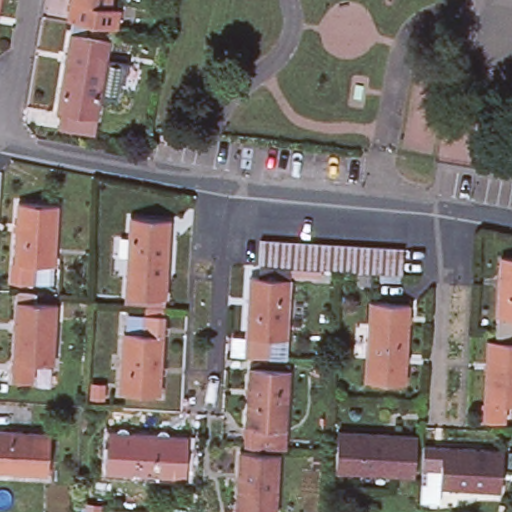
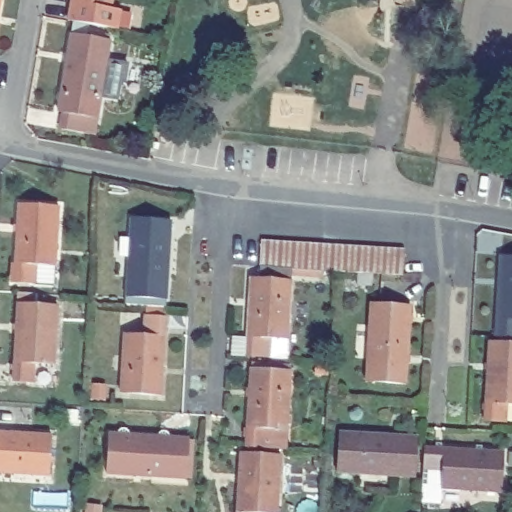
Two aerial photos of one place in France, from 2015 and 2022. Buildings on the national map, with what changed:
unchanged [(2,0),(0,11),(0,0),(2,0)]
unchanged [(90,22),(70,18),(73,0),(113,0),(112,6),(122,8),(119,27),(90,22)]
unchanged [(60,132),(63,115),(60,115),(74,37),(112,43),(97,121),(95,137),(60,132)]
unchanged [(35,283),(14,281),(20,204),(60,207),(56,266),(55,285),(35,283)]
unchanged [(133,215),(172,217),(166,299),(128,297),(133,215)]
unchanged [(302,266),(289,265),(277,264),(264,263),(265,237),(278,237),(290,238),(302,239),(317,240),(329,241),(340,241),(355,242),(367,242),(380,244),(395,244),(407,245),(407,271),(394,270),(380,270),(367,268),(354,268),(339,267),(328,267),(315,266),(302,266)]
unchanged [(501,260),(512,261),(512,339),(495,338),(501,260)]
unchanged [(247,353),(252,276),(292,278),(289,336),(270,335),(269,355),(247,353)]
unchanged [(20,292),(37,293),(37,303),(57,305),(54,365),(35,363),(34,382),(15,380),(19,302),(20,292)]
unchanged [(402,381),(365,377),(370,299),(408,302),(402,381)]
unchanged [(130,333),(150,335),(152,315),(171,316),(165,393),(127,391),(130,333)]
unchanged [(512,404),(503,403),(502,425),(482,423),(487,343),(512,345),(512,404)]
unchanged [(256,366),(296,368),(292,427),(274,426),(272,445),(251,444),(256,366)]
unchanged [(54,468),(0,465),(0,426),(56,429),(54,468)]
unchanged [(423,435),(420,475),(344,470),(347,430),(423,435)]
unchanged [(110,432),(188,437),(185,476),(108,472),(110,432)]
unchanged [(431,443),(508,448),(505,487),(450,484),(449,464),(430,462),(431,443)]
unchanged [(247,450),(286,452),(283,511),(264,510),(263,512),(244,512),(247,450)]

